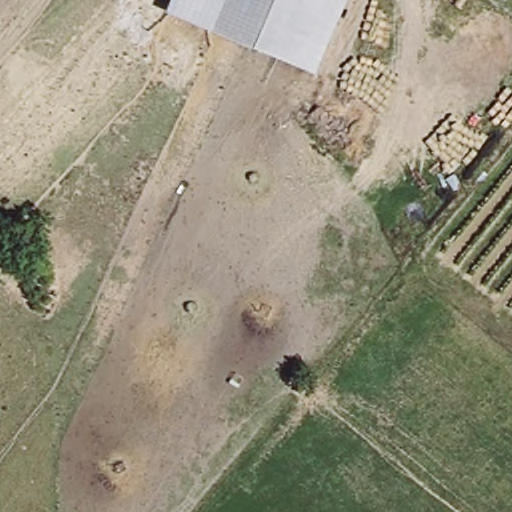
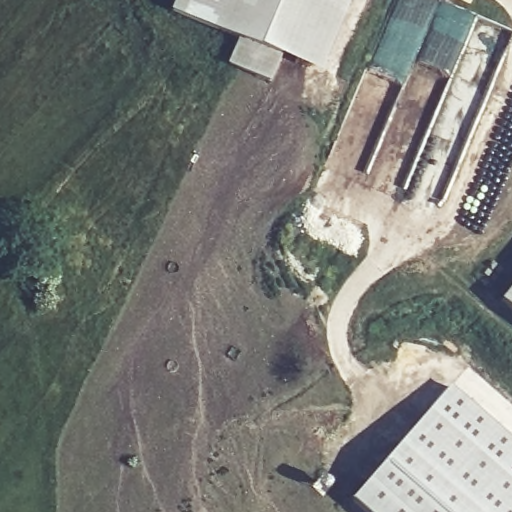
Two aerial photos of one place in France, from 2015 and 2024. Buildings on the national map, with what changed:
unchanged [(169,12),(174,0),(229,0),(216,31),(169,12)]
unchanged [(216,31),(229,0),(349,0),(318,73),(216,31)]
new [(512,293),(512,309),(504,302),(512,293)]
new [(512,438),(512,512),(361,512),(347,500),(450,384),(512,438)]

